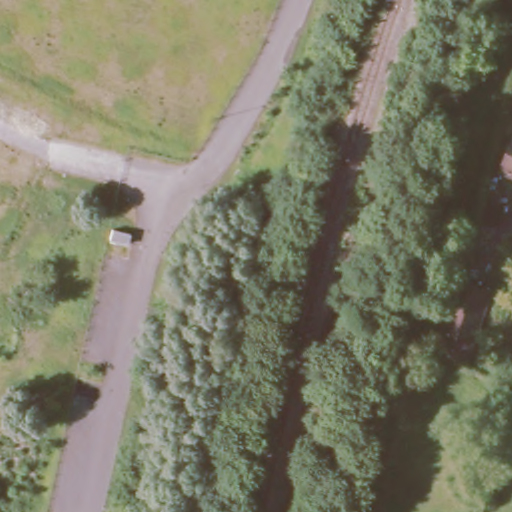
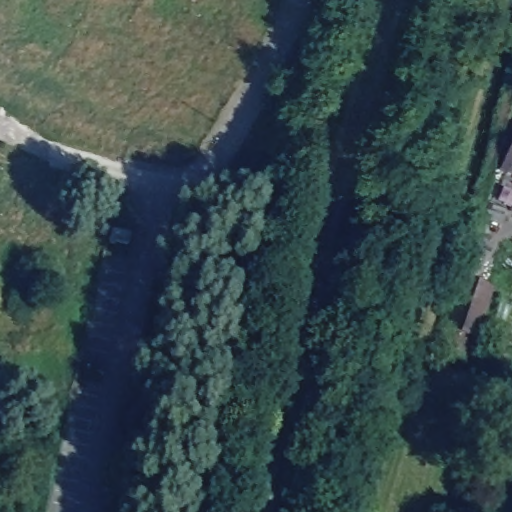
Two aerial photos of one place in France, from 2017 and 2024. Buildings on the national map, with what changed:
unchanged [(512,138),(512,170),(501,165),(512,138)]
unchanged [(129,235),(126,245),(108,240),(111,230),(129,235)]
unchanged [(440,350),(456,294),(459,283),(488,291),(485,302),(469,360),(440,350)]

